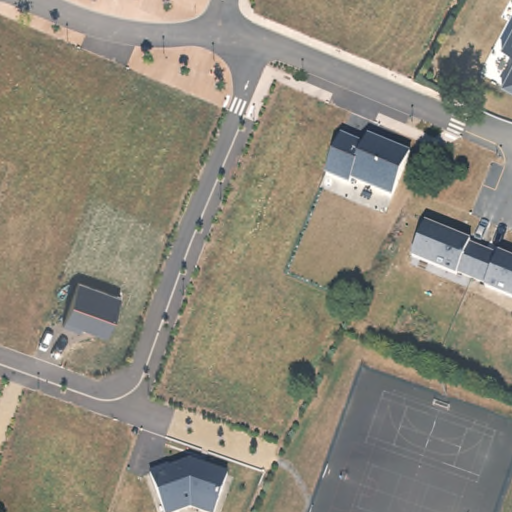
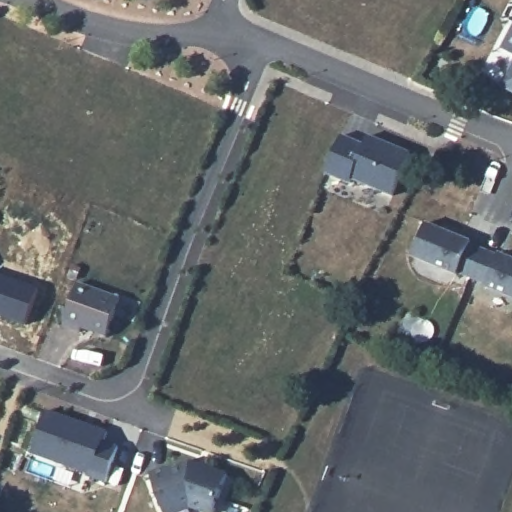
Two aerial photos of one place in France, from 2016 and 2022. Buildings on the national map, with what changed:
unchanged [(512,24),(512,58),(498,51),(512,24)]
unchanged [(512,62),(512,95),(498,88),(512,62)]
unchanged [(351,178),(347,185),(323,174),(342,134),(365,143),(370,136),(409,152),(391,195),(351,178)]
unchanged [(498,254),(512,260),(512,299),(485,288),(485,286),(456,274),(455,276),(410,258),(424,224),(468,242),(468,245),(497,256),(498,254)]
unchanged [(79,333),(62,326),(76,283),(120,298),(105,336),(82,328),(79,333)]
new [(107,431),(104,440),(119,445),(105,483),(88,478),(90,472),(32,453),(48,409),(107,431)]
unchanged [(179,512),(162,512),(147,474),(187,458),(226,474),(213,512),(200,512),(190,507),(179,512)]

